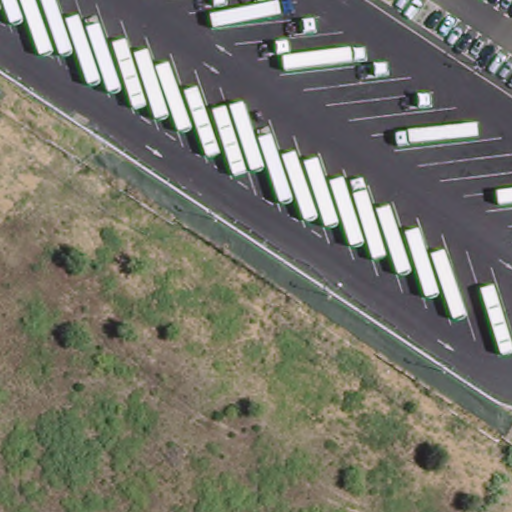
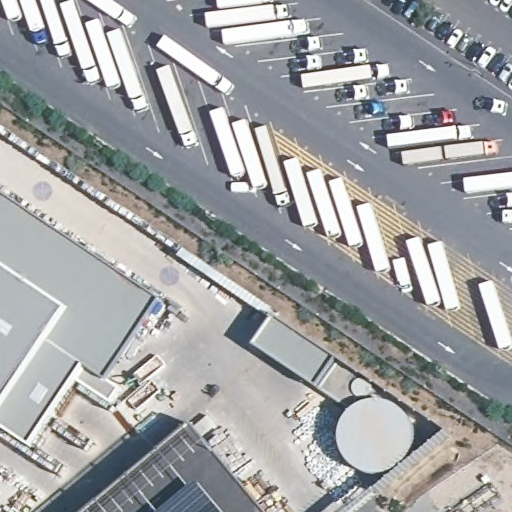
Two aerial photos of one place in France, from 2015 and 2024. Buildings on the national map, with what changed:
new [(108,380),(84,366),(32,446),(0,427),(0,191),(161,300),(108,380)]
new [(257,346),(276,319),(338,359),(319,389),(257,346)]
new [(374,384),(356,411),(319,389),(338,359),(374,384)]
new [(193,429),(263,512),(92,512),(193,429)]

